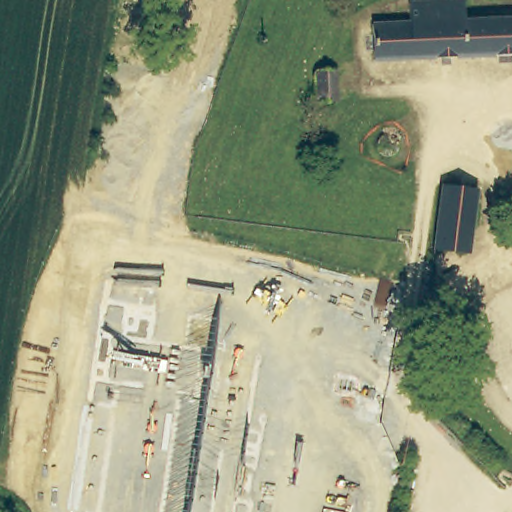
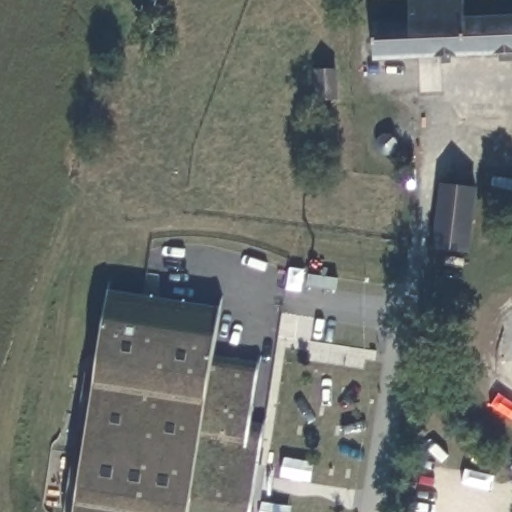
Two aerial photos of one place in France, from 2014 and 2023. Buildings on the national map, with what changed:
unchanged [(370,2),(395,0),(463,0),(465,19),(512,15),(512,52),(371,62),(370,51),(371,18),(370,2)]
unchanged [(335,65),(335,90),(314,90),(314,66),(335,65)]
unchanged [(381,144),(387,141),(395,141),(401,146),(403,153),(401,160),(396,165),(388,165),(381,161),(378,156),(378,150),(381,144)]
unchanged [(462,250),(457,250),(434,246),(430,245),(436,184),(469,186),(465,222),(462,250)]
demolished [(508,218),(502,217),(503,205),(512,207),(512,213),(508,218)]
new [(213,358),(258,366),(249,422),(264,425),(250,512),(73,512),(107,292),(219,310),(213,358)]

